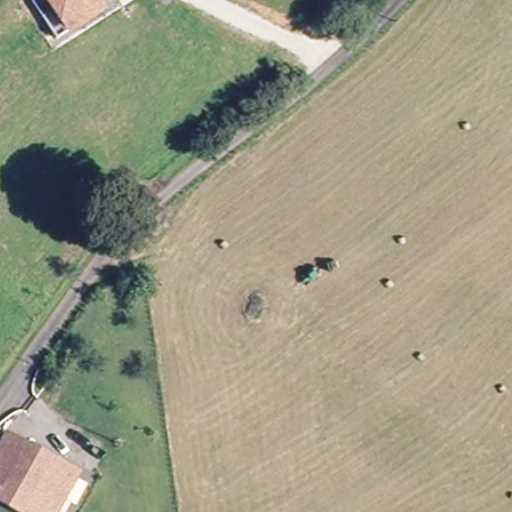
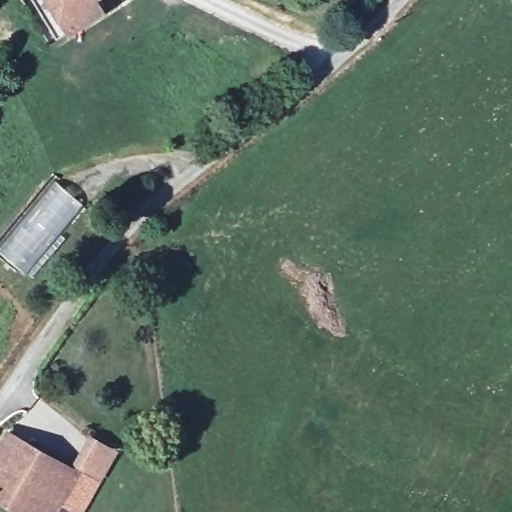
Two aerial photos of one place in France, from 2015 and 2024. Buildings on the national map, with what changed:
unchanged [(97,15),(67,35),(43,0),(106,0),(110,6),(97,15)]
new [(85,205),(28,277),(0,256),(0,241),(55,179),(85,205)]
unchanged [(8,431),(78,472),(55,512),(22,512),(0,500),(0,445),(1,444),(8,431)]

